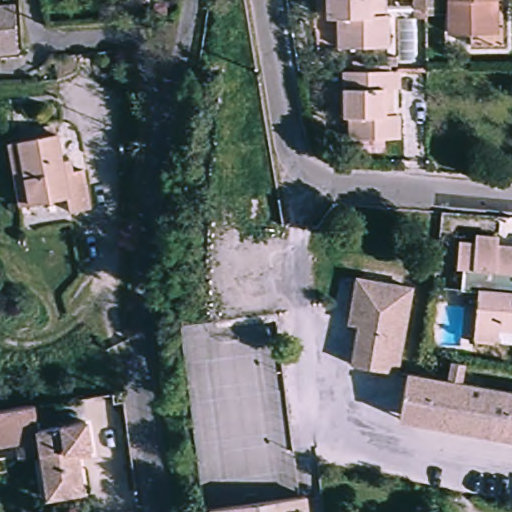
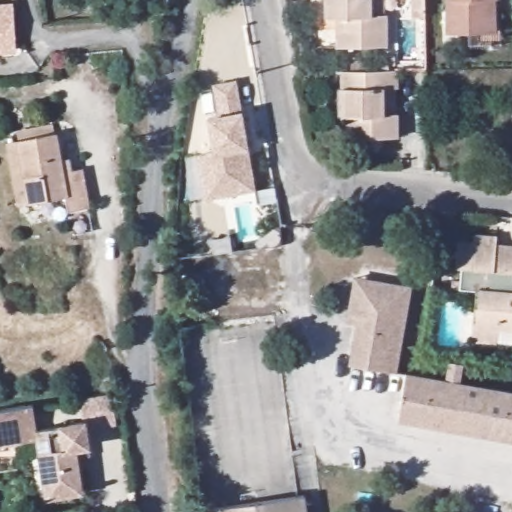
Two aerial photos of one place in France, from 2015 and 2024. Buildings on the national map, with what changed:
unchanged [(326,17),(325,0),(373,0),(374,16),(381,15),(384,48),(337,47),(337,29),(338,17),(326,17)]
unchanged [(485,34),(442,33),(442,0),(485,0),(485,34)]
unchanged [(11,52),(0,52),(0,6),(9,5),(11,52)]
unchanged [(344,122),(346,122),(346,138),(341,138),(336,136),(332,133),(329,129),(327,125),(326,121),(326,75),(344,75),(344,122)]
unchanged [(346,122),(344,122),(344,75),(397,76),(396,139),(346,138),(346,122)]
new [(207,200),(204,179),(200,153),(216,151),(211,116),(222,115),(218,84),(240,80),(256,190),(230,193),(231,196),(207,200)]
unchanged [(58,162),(68,161),(70,173),(80,171),(86,208),(66,212),(63,197),(28,203),(18,204),(6,144),(16,142),(54,136),(58,162)]
unchanged [(470,324),(474,288),(457,286),(459,266),(453,265),(455,240),(473,242),(474,232),(497,234),(496,244),(512,245),(512,342),(468,338),(470,324)]
unchanged [(390,373),(345,365),(351,324),(341,322),(349,277),(359,278),(404,287),(390,373)]
unchanged [(440,382),(444,361),(456,364),(452,384),(512,395),(512,433),(393,410),(399,374),(440,382)]
unchanged [(85,453),(73,455),(80,498),(43,503),(35,440),(0,444),(0,411),(32,407),(36,434),(83,427),(85,453)]
unchanged [(391,420),(393,410),(512,433),(512,442),(391,420)]
unchanged [(316,504),(316,512),(218,512),(218,504),(296,504),(316,504)]

